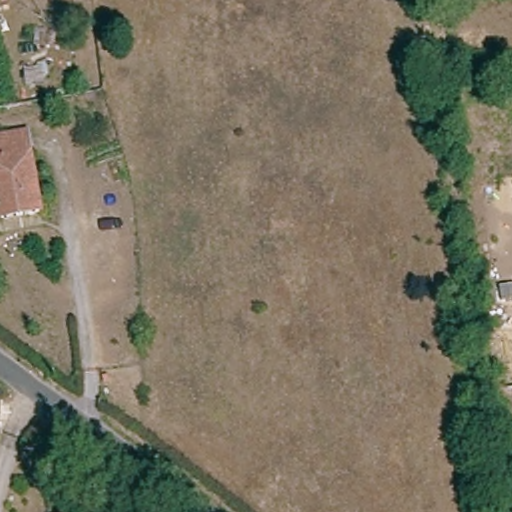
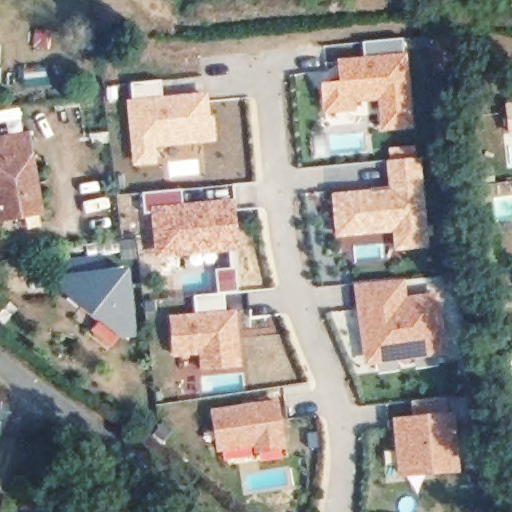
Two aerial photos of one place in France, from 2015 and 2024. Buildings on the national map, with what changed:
new [(340,80),(337,60),(365,57),(363,43),(403,39),(404,54),(407,54),(414,128),(381,131),(378,100),(355,103),(356,111),(323,115),(320,84),(340,80)]
new [(161,81),(162,95),(208,93),(210,118),(215,117),(217,142),(156,149),(157,165),(133,166),(126,100),(133,99),(132,84),(161,81)]
new [(512,137),(509,138),(504,104),(512,102),(512,137)]
unchanged [(0,222),(0,145),(23,141),(25,160),(34,215),(0,222)]
new [(421,159),(429,249),(395,252),(393,232),(335,238),(331,194),(390,188),(386,160),(421,159)]
new [(181,189),(183,204),(236,199),(240,252),(155,259),(150,212),(144,212),(143,193),(181,189)]
new [(61,293),(58,276),(66,274),(64,261),(103,256),(105,269),(129,267),(137,338),(121,340),(61,293)]
new [(405,279),(407,295),(438,292),(447,355),(364,366),(353,284),(405,279)]
new [(237,312),(242,368),(200,373),(199,355),(173,358),(168,317),(237,312)]
new [(287,451),(255,456),(254,446),(217,450),(210,410),(279,399),(287,451)]
new [(413,416),(412,402),(446,399),(447,412),(454,412),(459,473),(398,478),(392,418),(413,416)]
new [(73,499),(90,512),(62,512),(73,499)]

